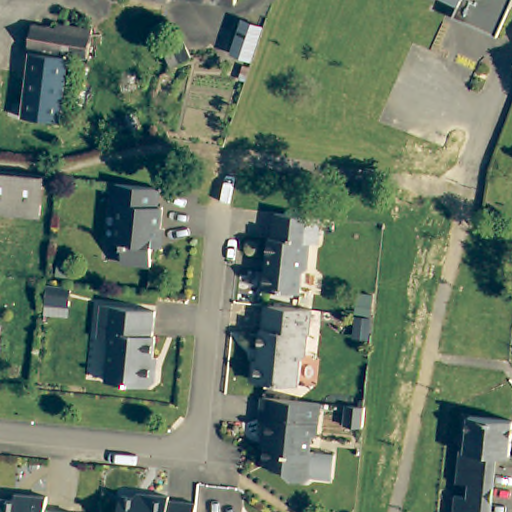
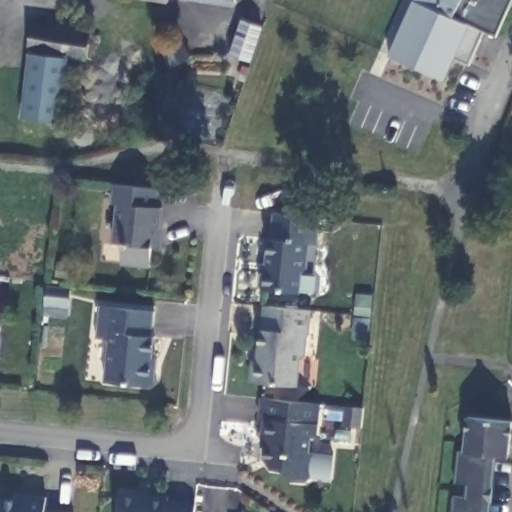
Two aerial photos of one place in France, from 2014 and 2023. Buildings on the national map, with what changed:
new [(445,12),(484,28),(469,62),(455,57),(445,79),(387,55),(412,0),(448,0),(449,1),(445,12)]
unchanged [(445,12),(449,1),(448,0),(502,0),(490,30),(445,12)]
unchanged [(39,18),(92,25),(88,50),(67,46),(35,42),(39,18)]
unchanged [(244,60),(232,56),(237,39),(242,23),(262,30),(252,62),(244,60)]
unchanged [(187,42),(165,54),(159,41),(180,29),(187,42)]
unchanged [(58,135),(24,131),(35,42),(67,46),(58,135)]
unchanged [(36,171),(47,172),(42,212),(0,208),(0,167),(36,171)]
unchanged [(157,188),(156,207),(161,207),(157,247),(151,246),(149,266),(120,263),(122,243),(112,242),(116,202),(111,202),(112,184),(157,188)]
unchanged [(318,219),(317,242),(308,242),(305,268),(298,267),(295,291),(256,287),(257,267),(261,267),(265,236),(271,235),(272,214),(318,219)]
unchanged [(45,287),(70,288),(67,306),(42,303),(45,287)]
unchanged [(154,308),(151,336),(154,336),(152,367),(157,367),(156,387),(104,382),(108,337),(94,336),(97,303),(152,308),(154,308)]
unchanged [(308,310),(306,335),(305,335),(301,356),(297,359),(295,385),(252,381),(250,377),(251,364),(255,361),(258,330),(259,330),(262,305),(308,310)]
unchanged [(328,475),(308,473),(302,477),(288,476),(282,463),(267,462),(258,451),(262,412),(256,412),(257,392),(317,398),(313,431),(307,430),(305,448),(311,449),(331,451),(328,475)]
unchanged [(341,426),(343,406),(362,408),(359,427),(341,426)]
unchanged [(512,424),(510,452),(502,452),(501,456),(491,456),(486,512),(455,512),(456,493),(469,494),(470,482),(457,481),(460,449),(467,450),(470,415),(512,417),(512,424)]
unchanged [(165,493),(165,500),(192,502),(191,512),(111,512),(112,496),(142,497),(142,492),(165,493)]
unchanged [(29,500),(29,493),(47,495),(47,507),(75,510),(74,512),(0,512),(0,497),(29,500)]

